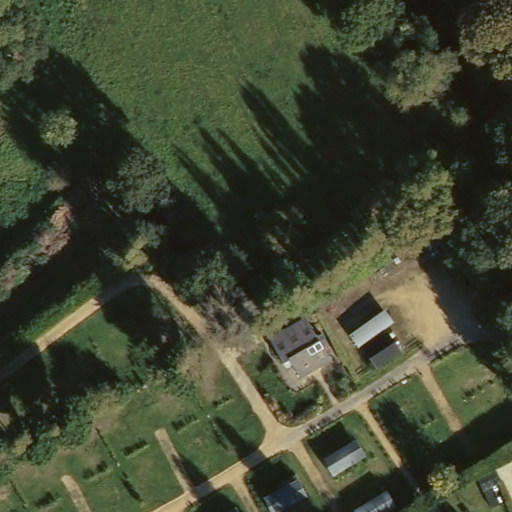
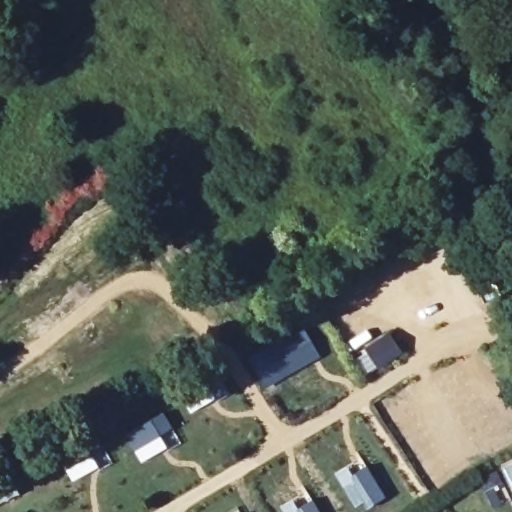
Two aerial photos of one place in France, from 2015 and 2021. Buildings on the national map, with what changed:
unchanged [(318,314),(343,360),(315,376),(305,356),(297,360),(283,335),(318,314)]

